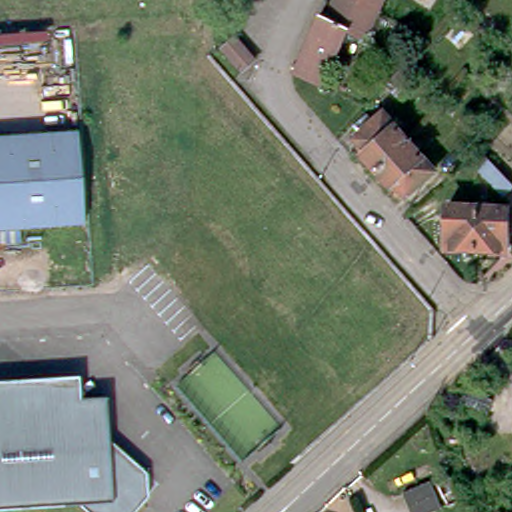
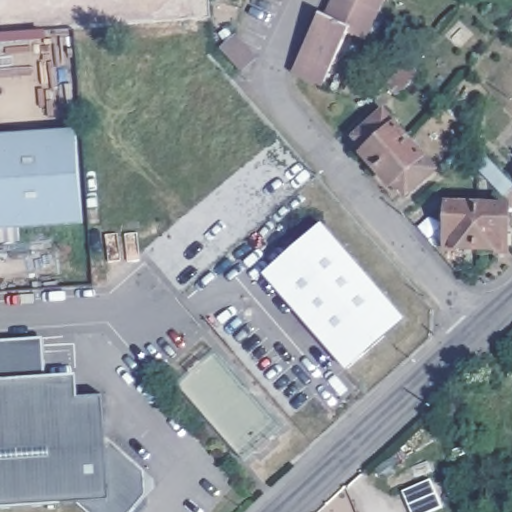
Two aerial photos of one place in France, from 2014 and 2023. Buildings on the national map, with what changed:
unchanged [(326,12),(332,0),(385,0),(367,37),(349,30),(324,83),(292,69),(311,29),(320,10),(326,12)]
unchanged [(234,38),(255,60),(243,71),(223,49),(234,38)]
unchanged [(410,59),(422,70),(397,96),(385,85),(410,59)]
unchanged [(362,154),(367,150),(355,136),(383,112),(409,141),(377,170),(362,154)]
unchanged [(75,127),(81,220),(19,225),(20,238),(0,239),(0,132),(75,127)]
unchanged [(445,154),(465,137),(476,150),(457,167),(445,154)]
unchanged [(409,141),(434,170),(406,195),(395,182),(390,185),(377,170),(409,141)]
unchanged [(445,246),(447,205),(480,206),(477,248),(445,246)]
unchanged [(480,206),(510,208),(508,250),(477,248),(480,206)]
new [(405,320),(347,370),(264,275),(321,224),(405,320)]
new [(43,338),(46,371),(0,375),(0,341),(43,338)]
unchanged [(127,512),(94,512),(79,498),(0,504),(0,375),(46,371),(48,393),(104,390),(106,432),(145,465),(157,476),(146,490),(127,512)]

